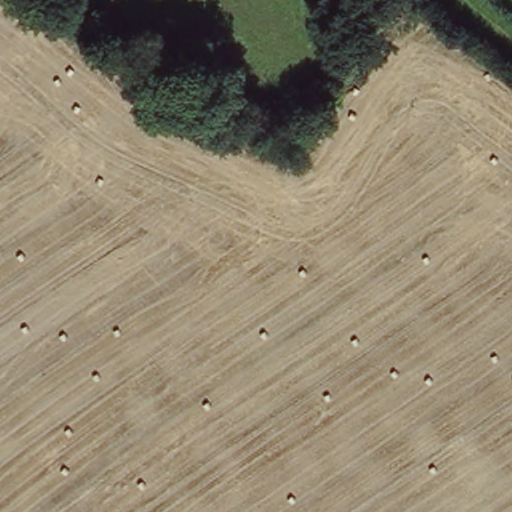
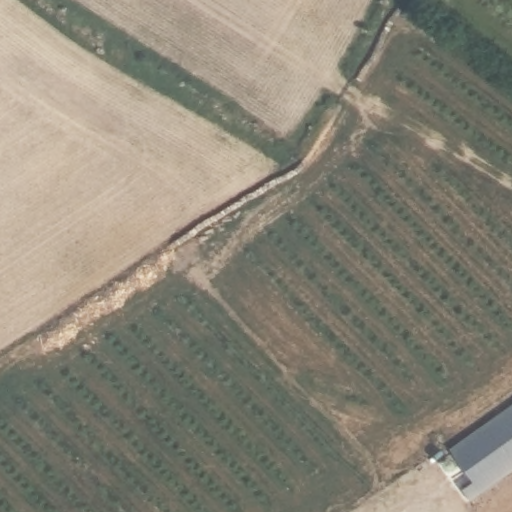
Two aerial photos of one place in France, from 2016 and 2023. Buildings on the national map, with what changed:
new [(478,487),(446,447),(512,398),(512,462),(478,487)]
demolished [(455,444),(470,459),(445,480),(430,465),(455,444)]

